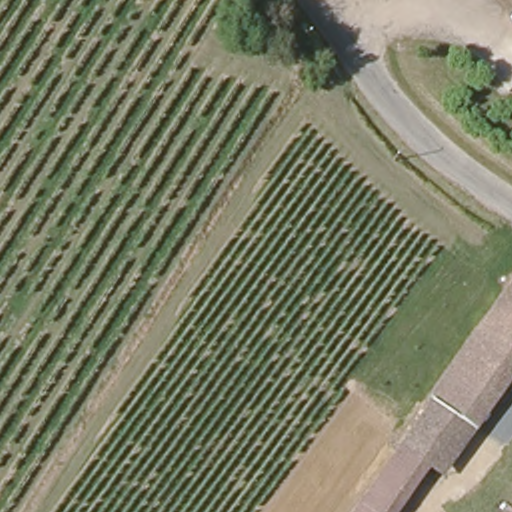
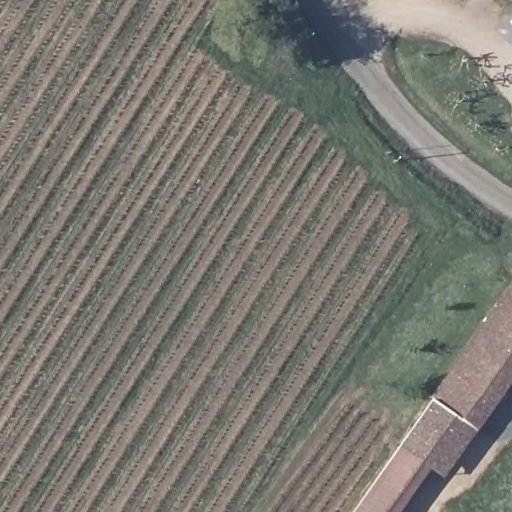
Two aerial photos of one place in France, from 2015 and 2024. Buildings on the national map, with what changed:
unchanged [(512,292),(512,378),(473,433),(432,402),(512,292)]
unchanged [(439,476),(419,462),(397,446),(418,419),(432,402),(473,433),(460,450),(439,476)]
unchanged [(350,512),(397,446),(419,462),(382,512),(350,512)]

